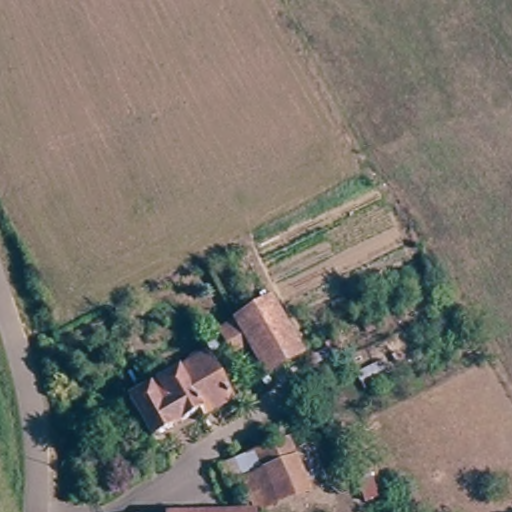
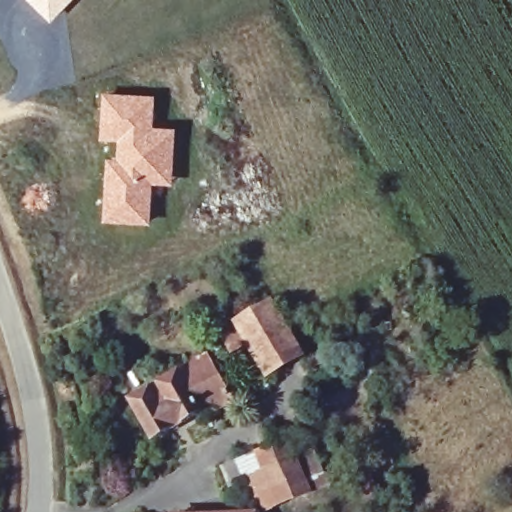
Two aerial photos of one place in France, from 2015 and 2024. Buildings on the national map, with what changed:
new [(28,0),(74,0),(51,23),(28,0)]
new [(105,91),(156,95),(155,125),(178,127),(174,185),(155,185),(151,225),(102,222),(109,157),(116,157),(118,142),(99,140),(105,91)]
unchanged [(303,354),(264,377),(251,348),(230,359),(210,328),(270,295),(303,354)]
unchanged [(156,435),(145,417),(132,397),(200,354),(228,397),(208,412),(196,406),(156,435)]
unchanged [(167,511),(246,509),(237,482),(224,484),(216,461),(286,435),(293,450),(314,443),(331,485),(256,512),(167,512),(167,511)]
unchanged [(139,509),(139,512),(130,512),(139,509)]

